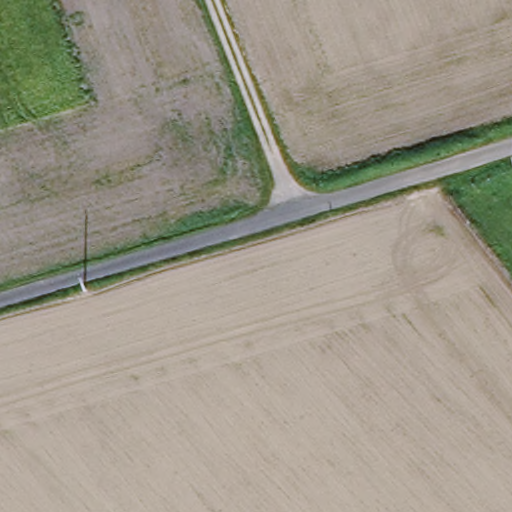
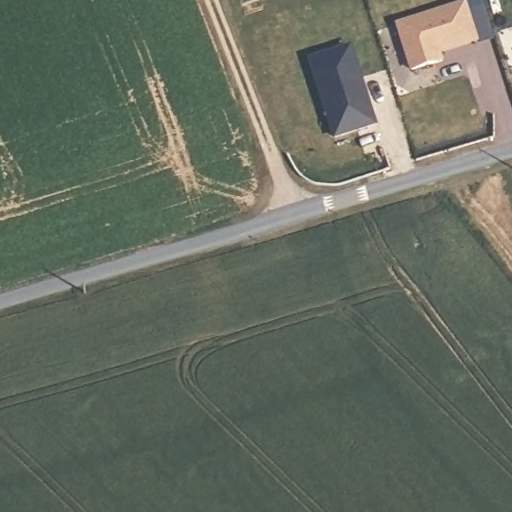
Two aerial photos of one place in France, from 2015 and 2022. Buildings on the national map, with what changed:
new [(465,4),(478,41),(439,53),(443,61),(412,71),(397,25),(465,4)]
new [(380,125),(335,139),(308,59),(352,45),(380,125)]

